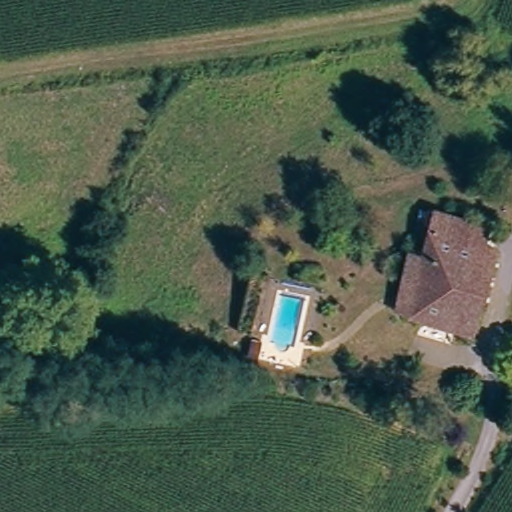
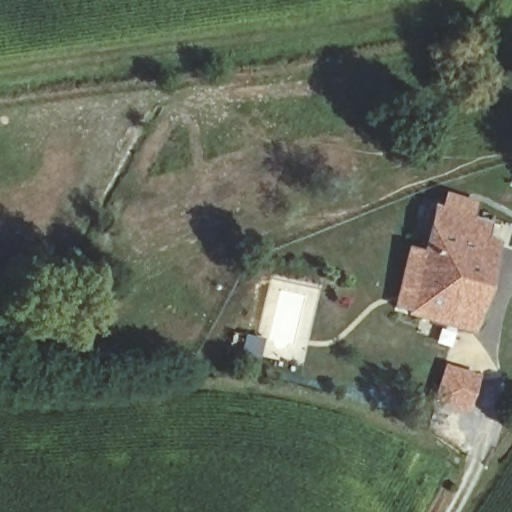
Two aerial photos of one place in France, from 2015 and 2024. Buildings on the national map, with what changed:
unchanged [(419,269),(424,228),(424,210),(456,215),(454,231),(468,233),(489,236),(483,274),(478,306),(473,333),(460,332),(414,326),(399,324),(404,268),(419,269)]
new [(446,365),(480,376),(469,413),(433,402),(446,365)]

